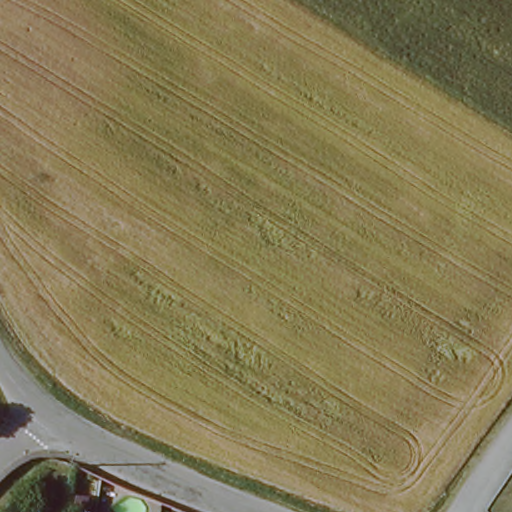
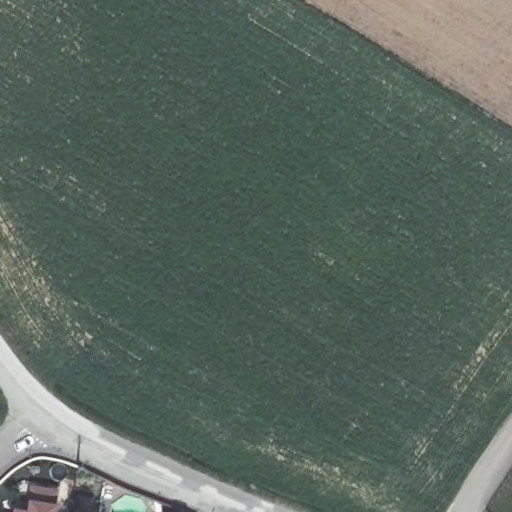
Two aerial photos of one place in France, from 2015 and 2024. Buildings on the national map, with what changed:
new [(28,498),(31,485),(60,488),(57,502),(55,512),(13,512),(14,507),(27,509),(28,498)]

